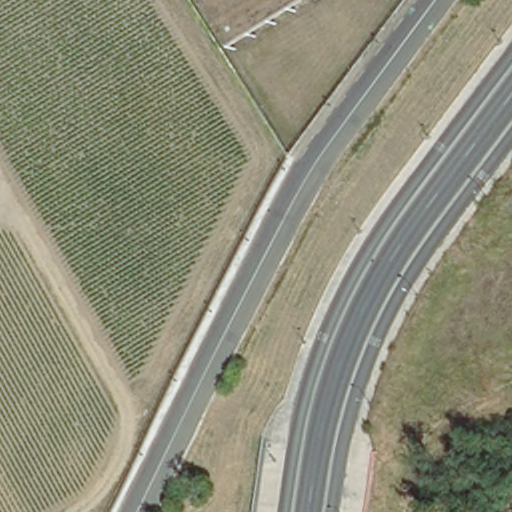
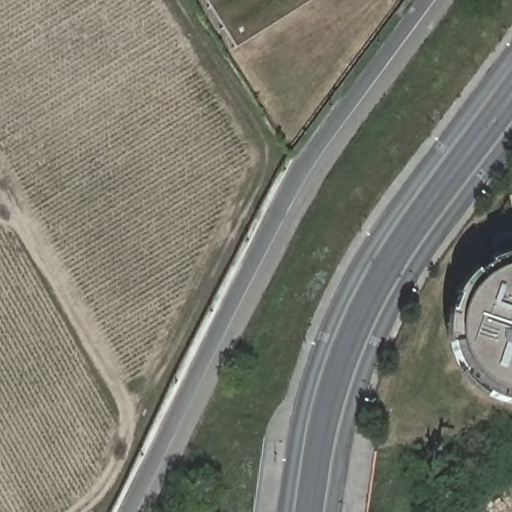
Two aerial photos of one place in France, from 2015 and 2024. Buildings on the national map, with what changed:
new [(501,400),(489,393),(484,399),(472,387),(461,373),(465,370),(457,357),(453,343),(449,343),(447,327),(449,310),(457,310),(461,298),(455,295),(463,281),(474,267),(478,271),(490,263),(488,258),(503,252),(512,250),(512,402),(501,400)]

